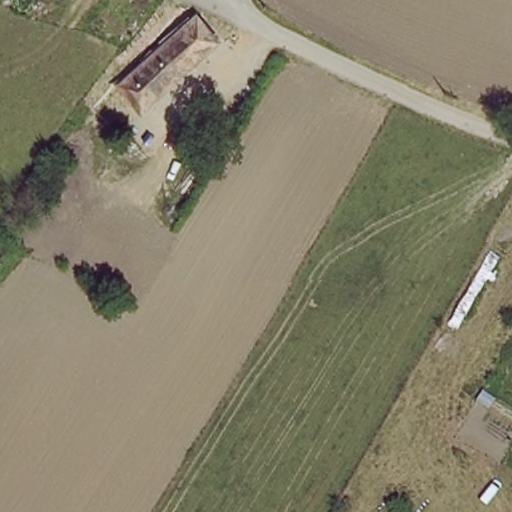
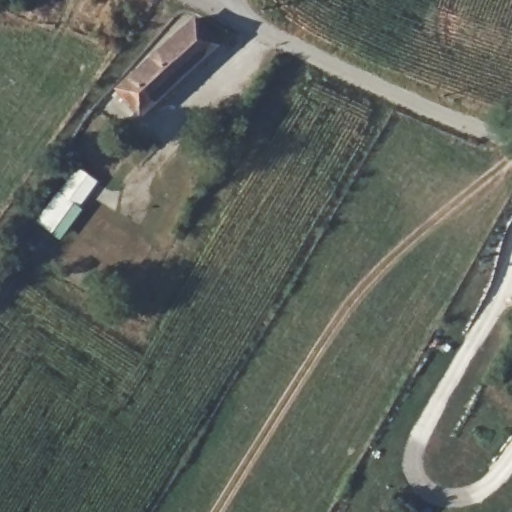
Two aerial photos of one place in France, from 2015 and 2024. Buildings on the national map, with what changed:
unchanged [(193,16),(216,42),(189,66),(166,39),(193,16)]
unchanged [(116,81),(131,69),(166,39),(189,66),(156,95),(140,109),(116,81)]
new [(79,208),(74,204),(53,233),(37,222),(77,166),(98,182),(79,208)]

